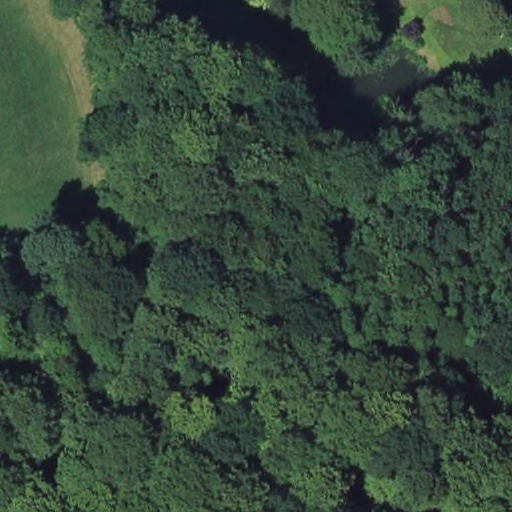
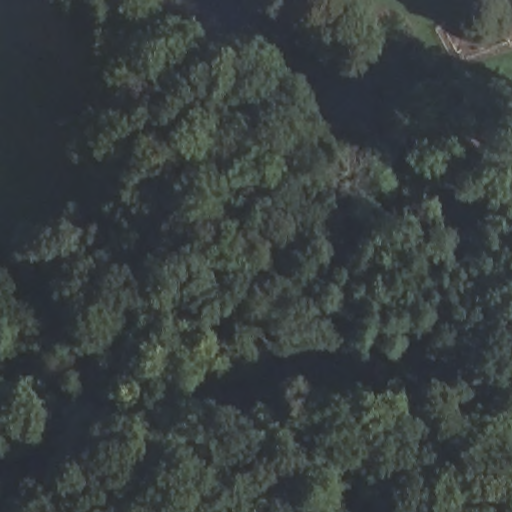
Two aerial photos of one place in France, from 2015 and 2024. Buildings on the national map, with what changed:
unchanged [(74,34),(61,0),(99,0),(106,22),(74,34)]

